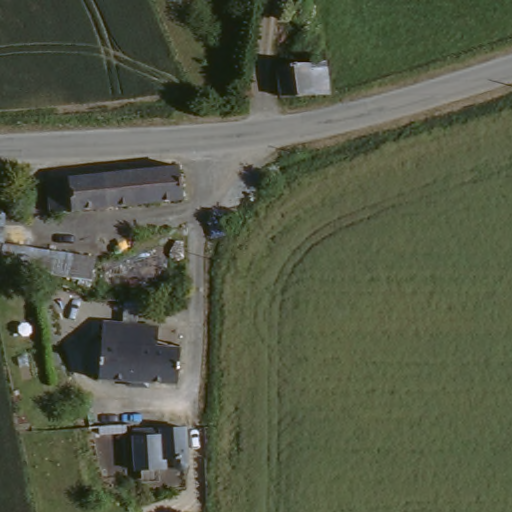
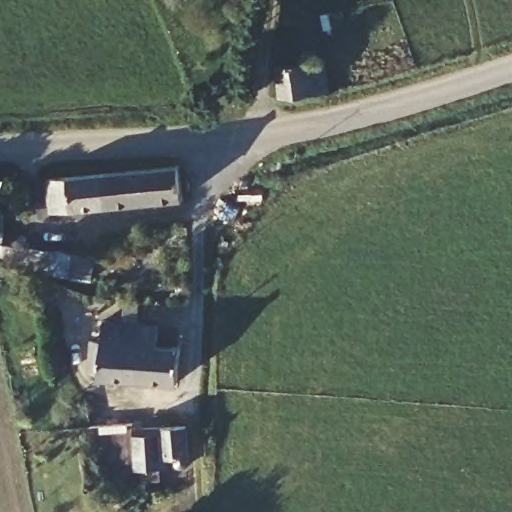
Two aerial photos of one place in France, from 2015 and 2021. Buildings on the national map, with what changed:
unchanged [(288,1),(288,0),(314,0),(313,4),(288,1)]
unchanged [(326,53),(331,82),(281,92),(277,60),(326,53)]
unchanged [(186,167),(187,197),(59,211),(55,180),(186,167)]
unchanged [(24,256),(25,246),(27,230),(61,232),(80,234),(78,261),(67,260),(57,260),(24,256)]
unchanged [(126,376),(86,372),(88,340),(102,341),(104,318),(131,320),(126,376)]
unchanged [(159,322),(158,343),(179,345),(178,380),(126,376),(131,320),(159,322)]
unchanged [(160,430),(165,423),(185,425),(186,455),(162,455),(162,466),(133,467),(133,430),(160,430)]

